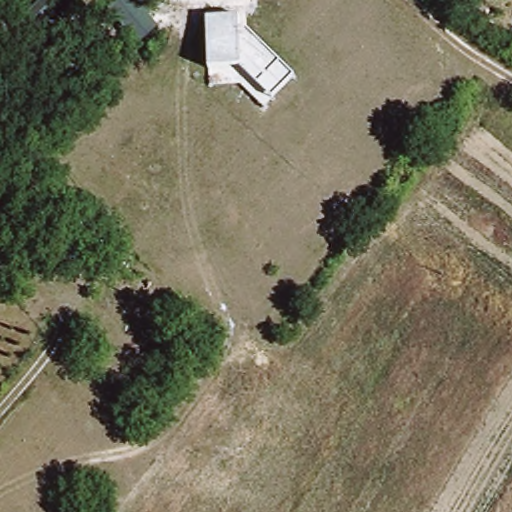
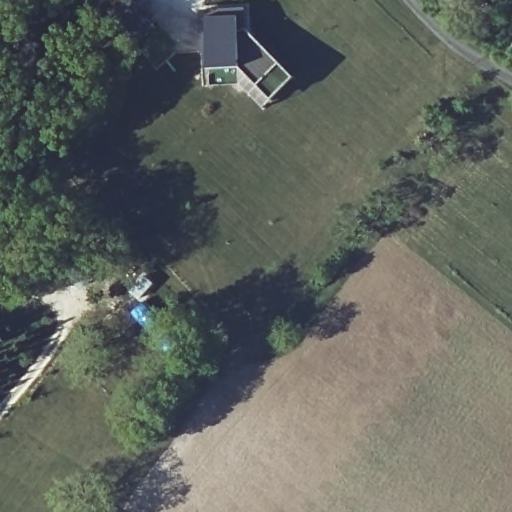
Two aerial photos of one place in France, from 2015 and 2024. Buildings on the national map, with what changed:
unchanged [(161,31),(136,50),(102,6),(110,0),(137,0),(161,31)]
unchanged [(238,17),(239,29),(246,29),(294,77),(273,100),(239,67),(209,69),(207,19),(238,17)]

